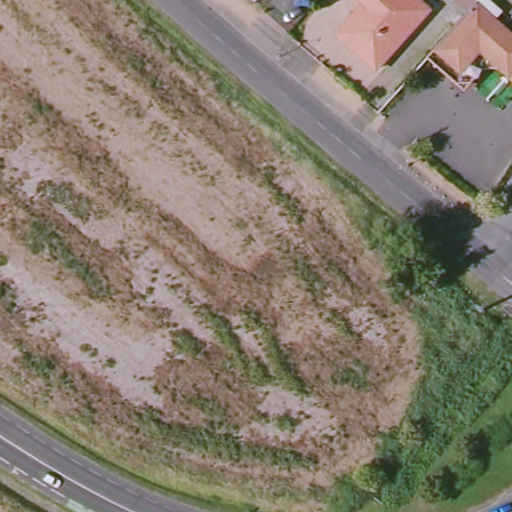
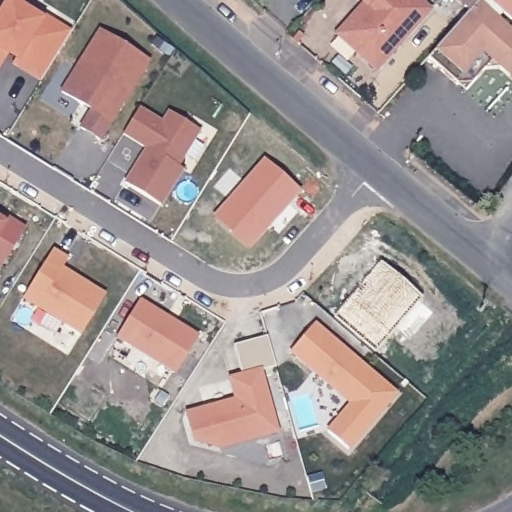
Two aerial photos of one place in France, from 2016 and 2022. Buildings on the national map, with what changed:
new [(6,0),(14,0),(41,17),(43,14),(70,32),(38,82),(13,66),(15,62),(8,57),(0,69),(0,10),(6,0)]
unchanged [(375,69),(335,34),(355,10),(360,15),(366,8),(357,0),(418,0),(427,8),(375,69)]
unchanged [(477,0),(477,1),(467,11),(455,0),(477,0)]
unchanged [(488,0),(512,0),(512,20),(512,21),(488,0)]
unchanged [(512,75),(497,64),(487,66),(474,82),(457,83),(430,57),(467,11),(477,1),(512,31),(512,75)]
new [(149,61),(99,142),(79,130),(89,112),(60,92),(98,30),(149,61)]
new [(179,167),(184,170),(162,206),(125,182),(145,149),(123,135),(140,107),(162,121),(167,112),(200,131),(179,167)]
new [(0,270),(0,212),(25,227),(0,270)]
new [(22,298),(53,251),(68,260),(63,268),(105,293),(81,336),(22,298)]
new [(117,337),(140,300),(200,336),(174,376),(117,337)]
new [(348,404),(290,354),(316,323),(398,394),(350,451),(326,432),(348,404)]
new [(236,401),(230,378),(240,375),(234,346),(267,337),(275,368),(261,372),(277,432),(222,448),(218,434),(194,441),(187,414),(236,401)]

